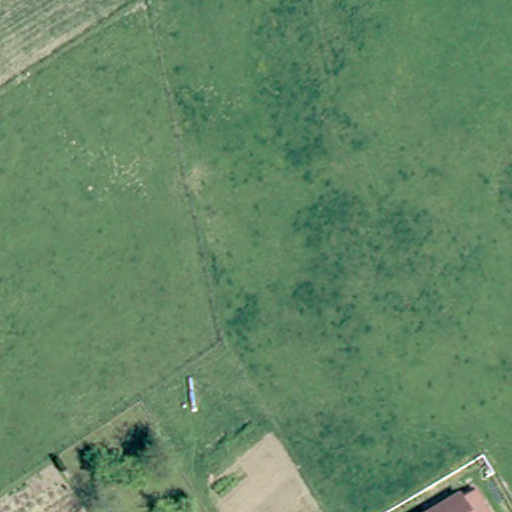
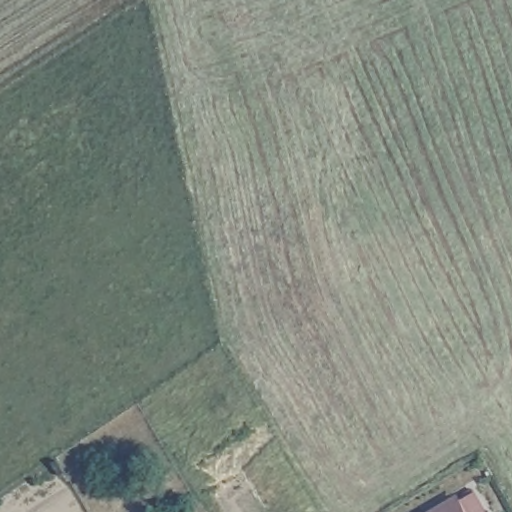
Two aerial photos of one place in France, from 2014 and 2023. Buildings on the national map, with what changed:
unchanged [(433,512),(459,496),(469,512),(433,512)]

